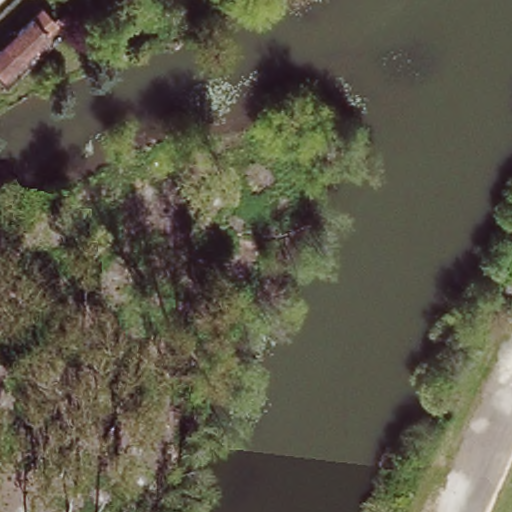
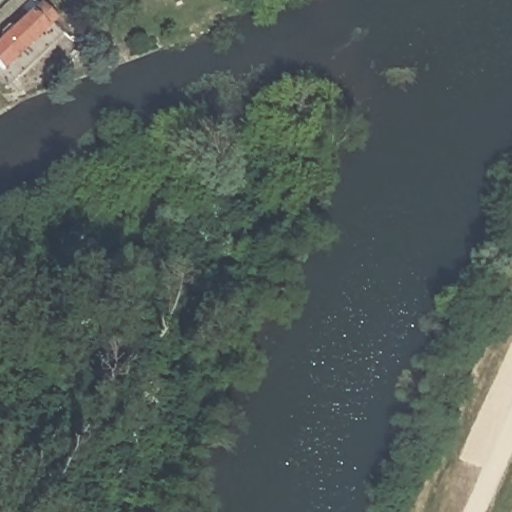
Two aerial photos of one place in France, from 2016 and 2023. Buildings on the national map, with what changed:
unchanged [(19,25),(24,30),(45,10),(60,25),(7,75),(0,69),(0,53),(7,46),(3,40),(19,25)]

